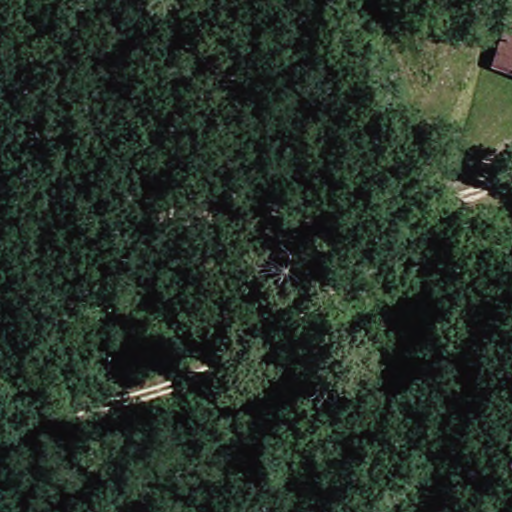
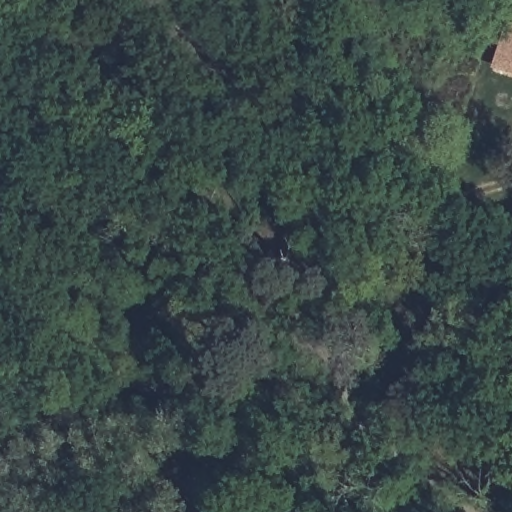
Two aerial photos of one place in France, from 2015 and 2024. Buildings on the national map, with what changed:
unchanged [(512,70),(491,65),(500,24),(512,28),(512,70)]

